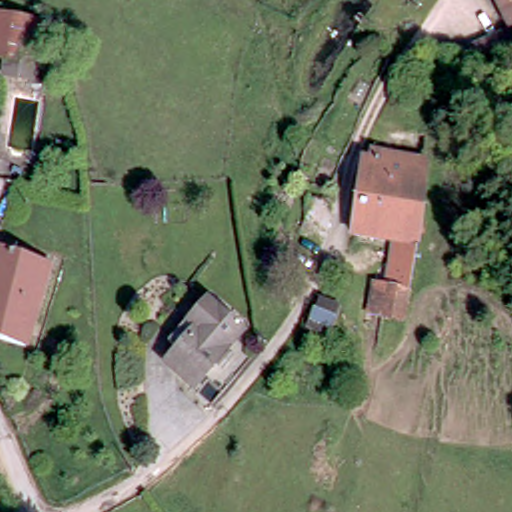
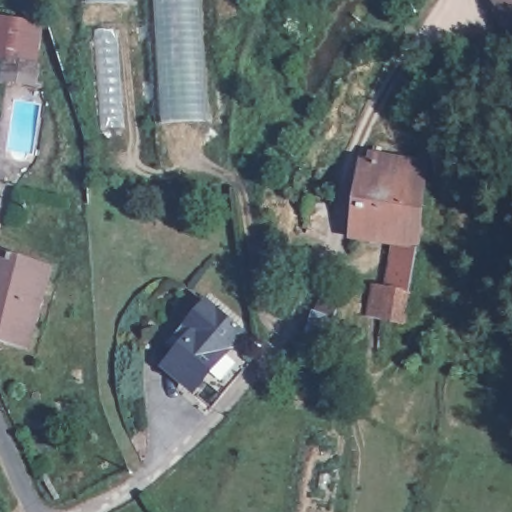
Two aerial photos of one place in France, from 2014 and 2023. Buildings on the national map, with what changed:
new [(133,3),(87,3),(87,0),(133,0),(133,3)]
new [(207,121),(162,124),(154,0),(199,0),(207,121)]
unchanged [(512,21),(510,23),(495,0),(512,0),(512,21)]
unchanged [(0,60),(0,20),(40,29),(37,68),(33,102),(17,100),(22,65),(0,60)]
unchanged [(373,282),(385,283),(388,250),(348,244),(352,170),(418,174),(410,318),(372,314),(373,282)]
unchanged [(54,270),(42,315),(30,352),(0,343),(0,252),(17,258),(54,270)]
unchanged [(195,392),(170,369),(205,331),(230,355),(195,392)]

